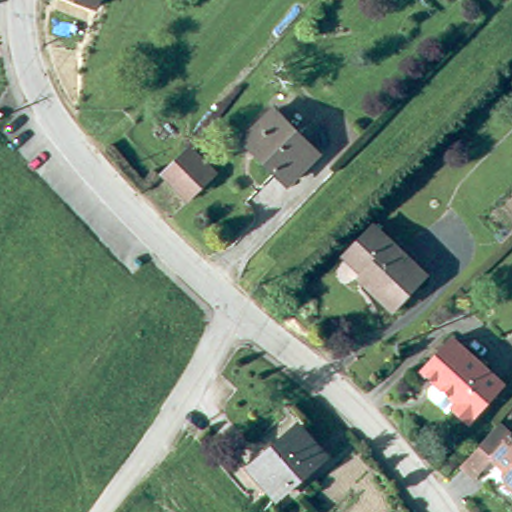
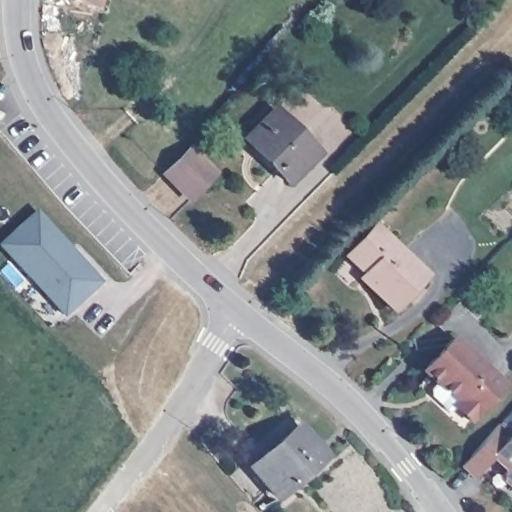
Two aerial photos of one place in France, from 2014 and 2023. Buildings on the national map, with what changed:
unchanged [(320,149),(290,178),(255,140),(247,133),(277,104),(283,111),(320,149)]
unchanged [(172,175),(196,152),(220,178),(222,180),(197,204),(196,202),(172,175)]
new [(36,212),(100,282),(65,315),(0,245),(36,212)]
unchanged [(378,226),(427,277),(394,311),(363,279),(367,275),(348,255),(378,226)]
unchanged [(457,335),(509,382),(475,420),(457,404),(451,409),(434,393),(434,386),(441,379),(429,367),(457,335)]
unchanged [(507,465),(497,455),(478,475),(464,462),(501,421),(512,430),(512,482),(509,480),(507,465)]
unchanged [(329,455),(282,495),(257,464),(303,424),(329,455)]

